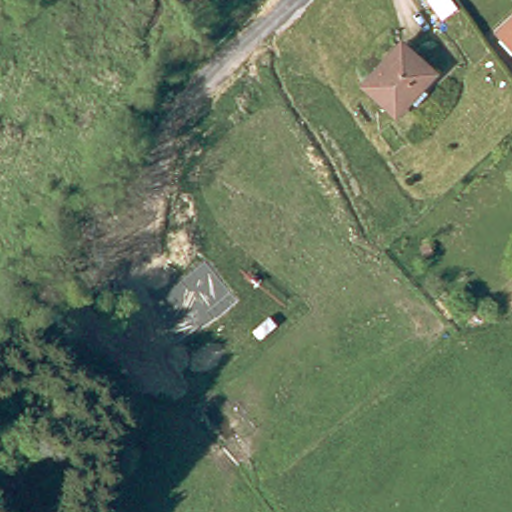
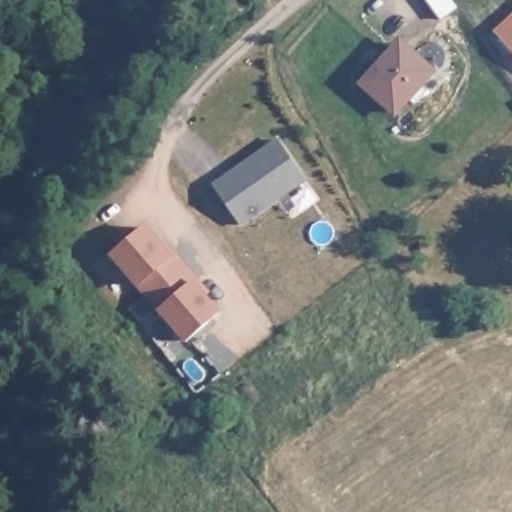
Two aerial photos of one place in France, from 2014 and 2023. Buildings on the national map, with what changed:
unchanged [(447,4),(461,23),(448,33),(434,14),(447,4)]
unchanged [(506,22),(512,17),(512,40),(500,28),(506,22)]
unchanged [(436,74),(399,111),(368,84),(406,45),(436,74)]
new [(279,139),(306,179),(241,224),(212,183),(279,139)]
new [(146,227),(170,255),(173,252),(198,280),(193,283),(218,312),(185,340),(111,255),(146,227)]

